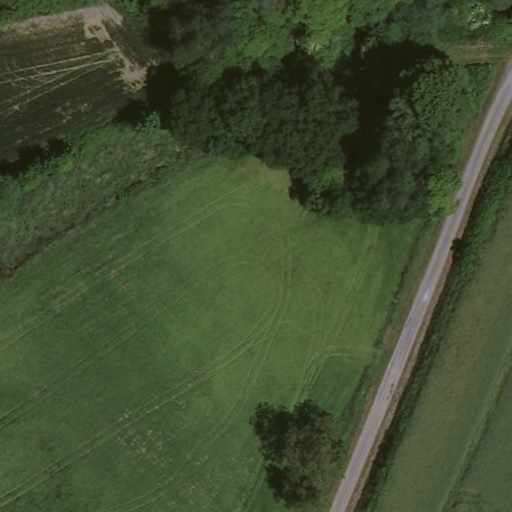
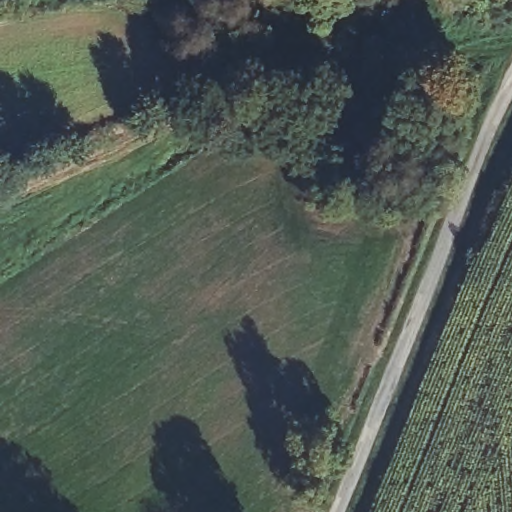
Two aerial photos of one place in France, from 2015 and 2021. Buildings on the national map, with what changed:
unchanged [(387,62),(367,63),(366,32),(386,31),(387,62)]

